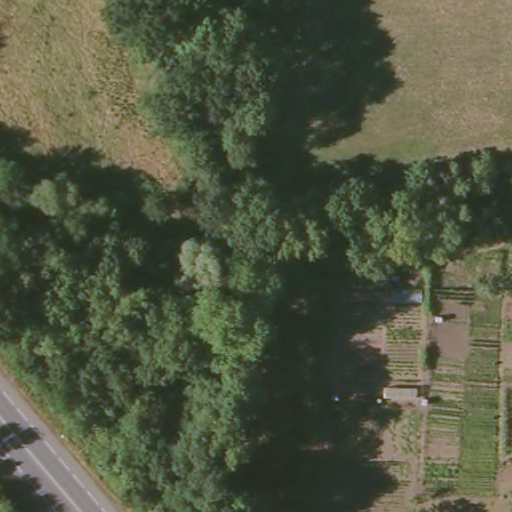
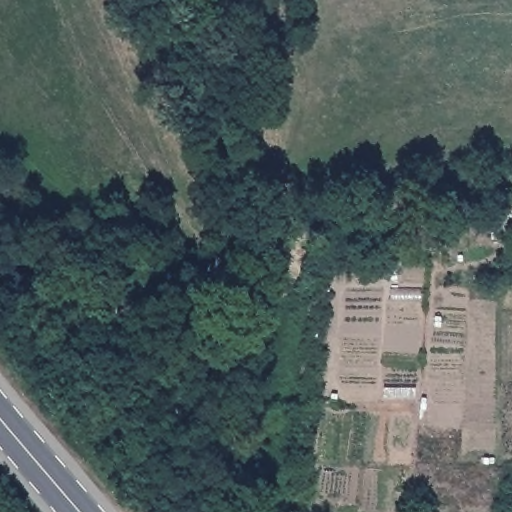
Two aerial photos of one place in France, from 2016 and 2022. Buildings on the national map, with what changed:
unchanged [(430,221),(433,252),(396,253),(396,222),(430,221)]

